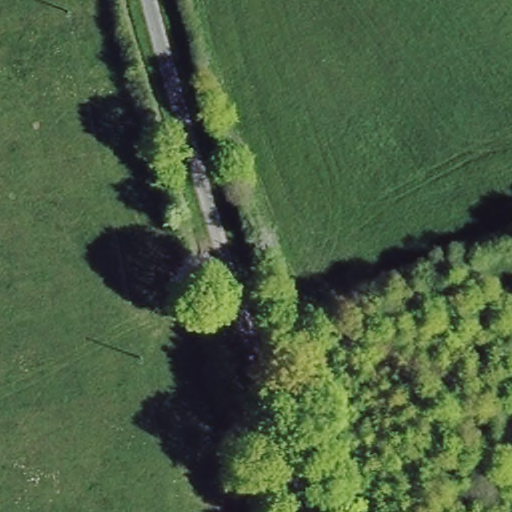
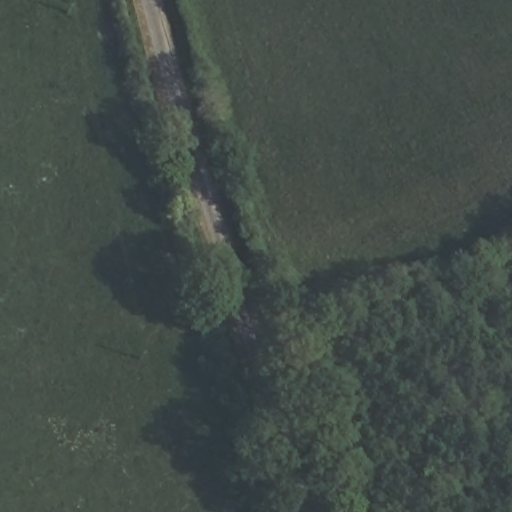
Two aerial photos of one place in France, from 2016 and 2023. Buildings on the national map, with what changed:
[]

